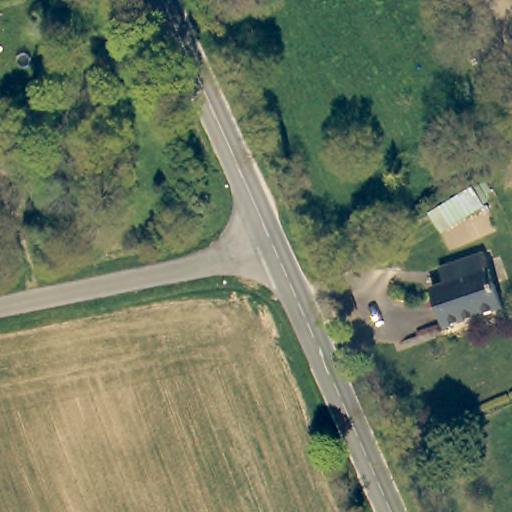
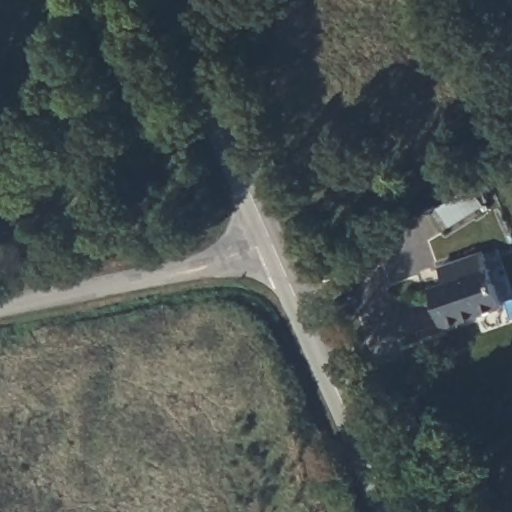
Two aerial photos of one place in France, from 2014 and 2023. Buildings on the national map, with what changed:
unchanged [(470,187),(485,210),(441,239),(427,221),(470,187)]
unchanged [(502,310),(444,332),(431,294),(443,290),(441,285),(436,270),(446,267),(482,255),(502,310)]

